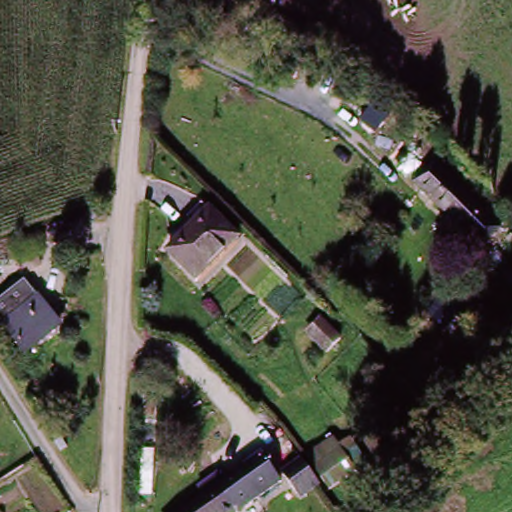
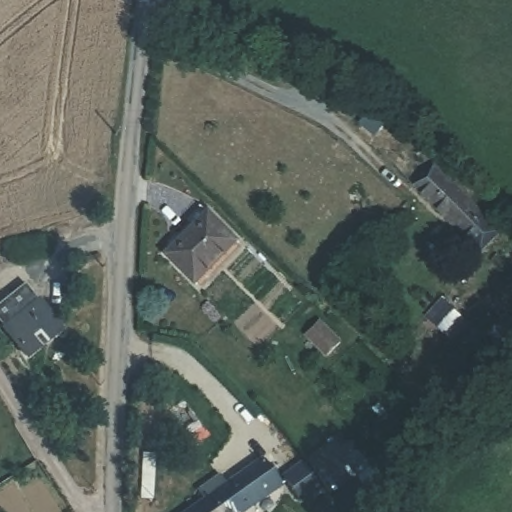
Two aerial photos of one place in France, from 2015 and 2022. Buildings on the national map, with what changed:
unchanged [(416,184),(434,169),(484,225),(466,239),(416,184)]
unchanged [(195,289),(165,253),(212,211),(241,243),(241,249),(195,289)]
unchanged [(33,295),(62,317),(31,358),(2,337),(33,295)]
unchanged [(275,480),(242,512),(220,512),(210,500),(254,457),(275,480)]
unchanged [(210,500),(220,512),(197,512),(210,500)]

